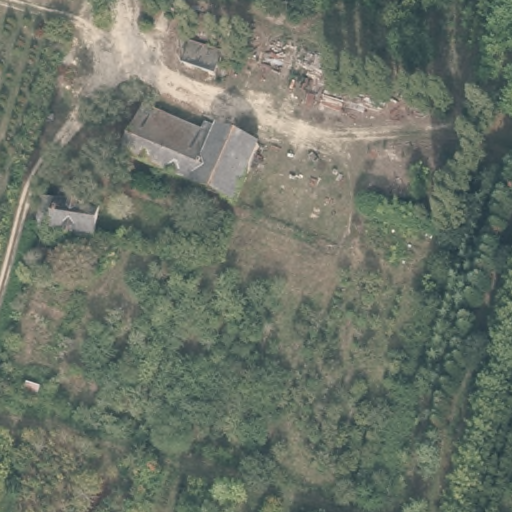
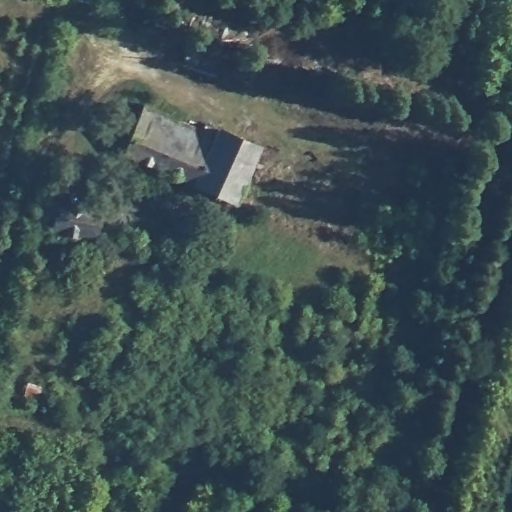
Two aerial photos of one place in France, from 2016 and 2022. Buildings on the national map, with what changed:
unchanged [(221,61),(217,74),(186,65),(195,39),(225,49),(240,54),(236,66),(221,61)]
unchanged [(147,111),(203,136),(208,128),(261,150),(237,207),(125,161),(147,111)]
unchanged [(36,227),(41,209),(43,197),(59,200),(60,191),(79,196),(78,204),(101,209),(100,221),(96,240),(36,227)]

